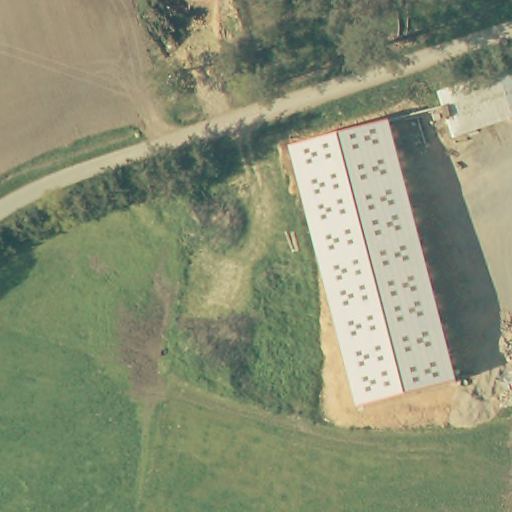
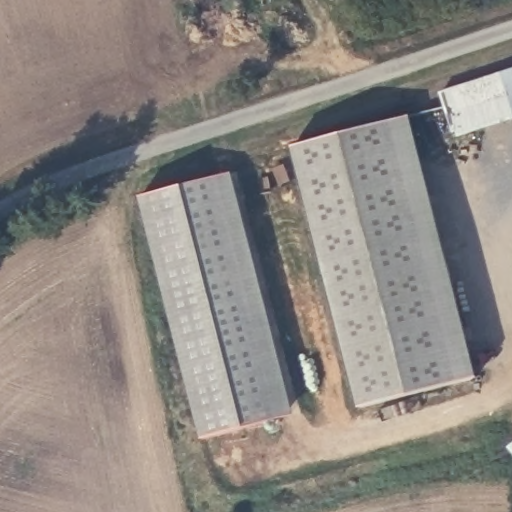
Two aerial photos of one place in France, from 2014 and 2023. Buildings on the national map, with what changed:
unchanged [(512,119),(462,135),(449,95),(512,74),(512,119)]
unchanged [(359,409),(287,147),(390,120),(458,382),(359,409)]
new [(231,174),(293,415),(202,440),(137,197),(231,174)]

